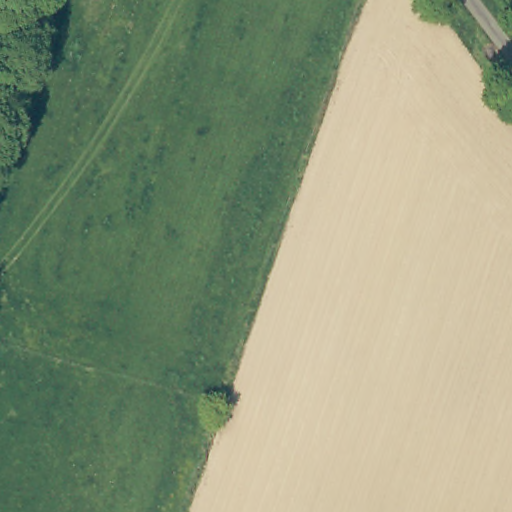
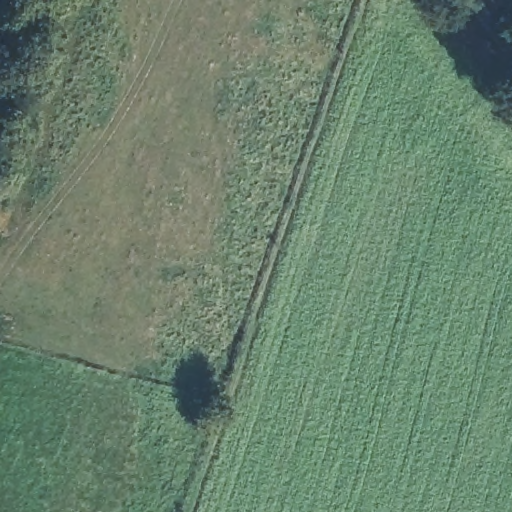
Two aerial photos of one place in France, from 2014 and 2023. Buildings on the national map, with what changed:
[]

